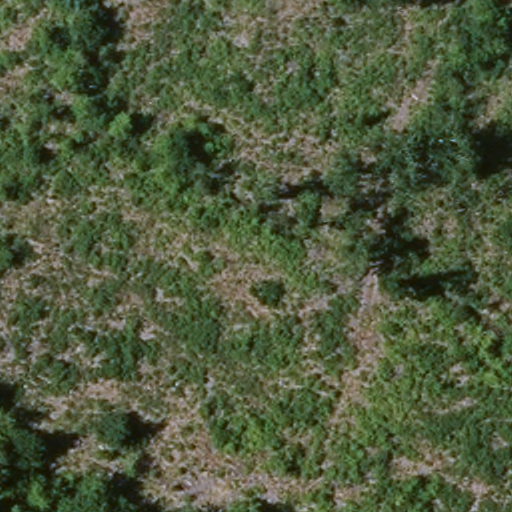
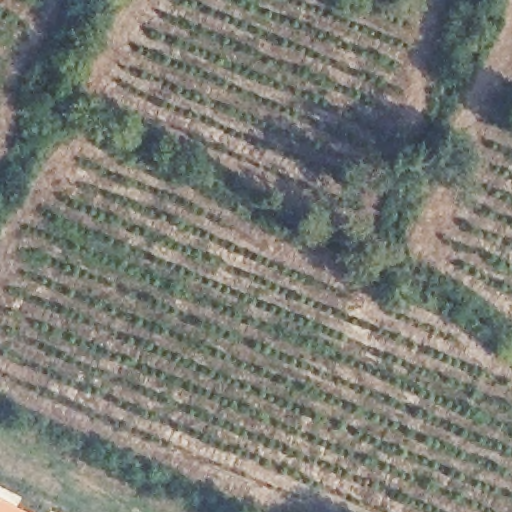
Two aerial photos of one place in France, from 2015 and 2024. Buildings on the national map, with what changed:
new [(26,512),(0,512),(0,497),(26,512)]

